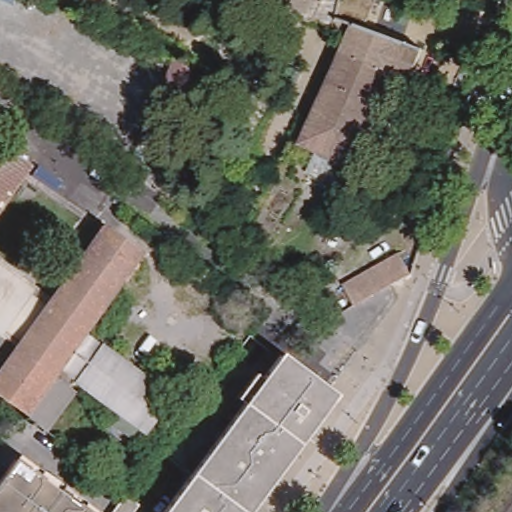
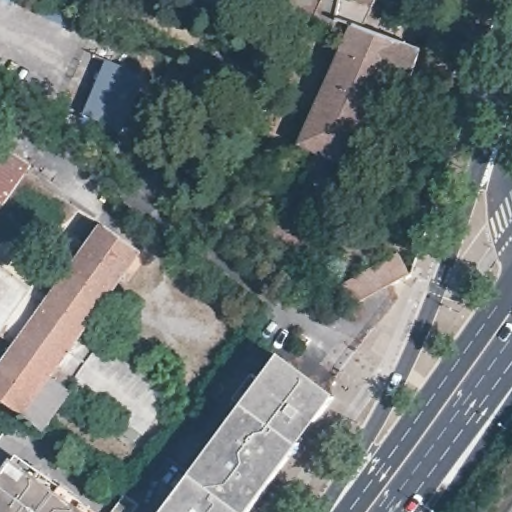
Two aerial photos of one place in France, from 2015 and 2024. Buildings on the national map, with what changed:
unchanged [(320,21),(319,19),(317,17),(310,20),(291,11),(296,0),(342,0),(337,32),(320,21)]
unchanged [(425,46),(410,79),(391,70),(344,48),(348,37),(337,32),(342,0),(375,0),(364,26),(425,46)]
unchanged [(391,70),(385,85),(364,132),(316,112),(344,48),(391,70)]
new [(124,131),(84,114),(107,59),(147,76),(124,131)]
unchanged [(291,86),(283,81),(289,69),(298,73),(291,86)]
unchanged [(308,174),(320,148),(303,141),(316,112),(364,132),(351,162),(343,159),(330,184),(308,174)]
unchanged [(0,204),(0,144),(28,164),(0,204)]
unchanged [(425,203),(426,200),(429,190),(439,193),(435,203),(435,206),(430,221),(415,216),(418,205),(419,202),(425,203)]
unchanged [(186,405),(159,440),(72,377),(66,386),(73,392),(46,429),(19,411),(0,397),(0,268),(32,289),(35,285),(53,298),(115,212),(151,238),(125,275),(119,283),(84,331),(126,362),(186,405)]
unchanged [(338,287),(395,255),(405,279),(350,306),(338,287)]
unchanged [(0,260),(0,256),(2,257),(0,260)]
unchanged [(187,476),(275,357),(289,368),(330,398),(246,512),(160,512),(187,476)]
unchanged [(0,471),(11,456),(88,512),(0,512),(0,471)]
unchanged [(124,492),(139,503),(132,512),(109,512),(124,492)]

